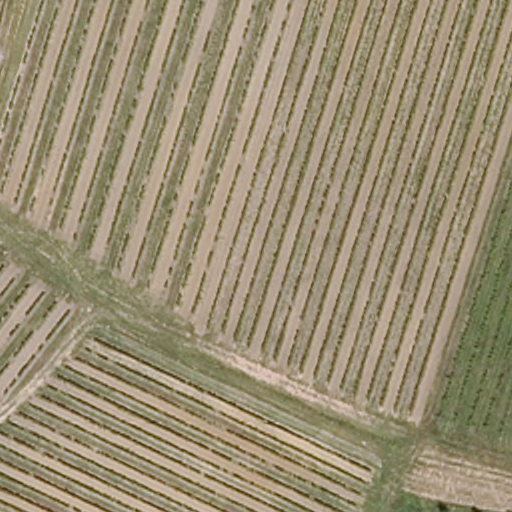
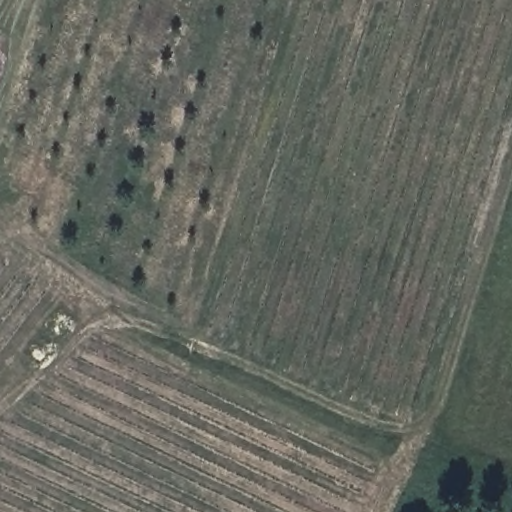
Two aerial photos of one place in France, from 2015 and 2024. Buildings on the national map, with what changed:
[]

